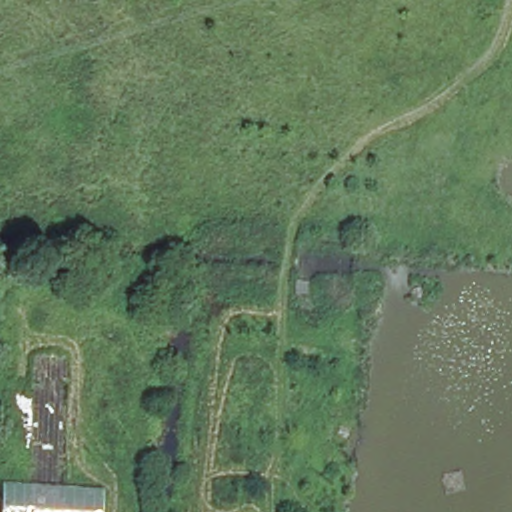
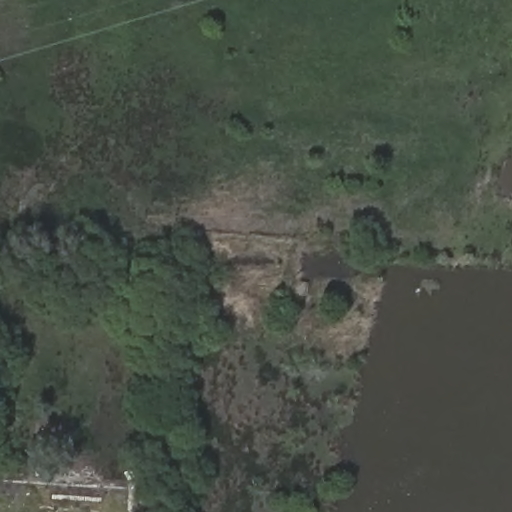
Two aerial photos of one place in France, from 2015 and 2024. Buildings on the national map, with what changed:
demolished [(100,512),(0,512),(0,503),(2,484),(101,491),(100,512)]

